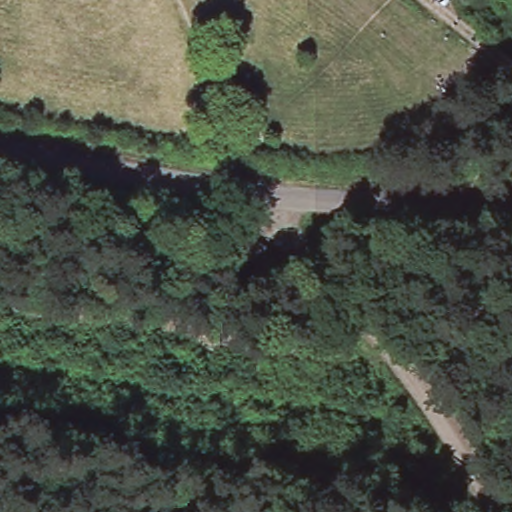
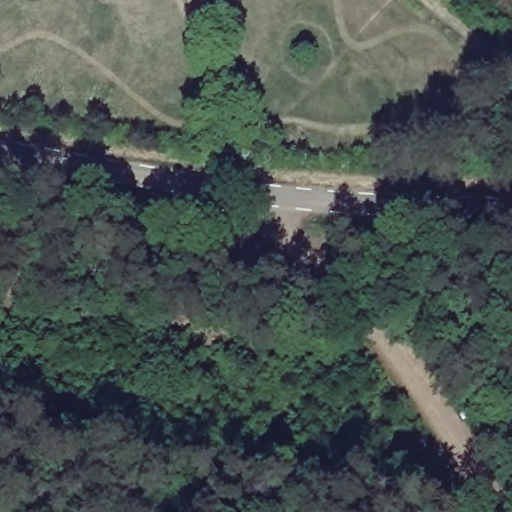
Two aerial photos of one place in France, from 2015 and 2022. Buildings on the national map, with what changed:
unchanged [(272,272),(245,281),(235,255),(262,245),(272,272)]

